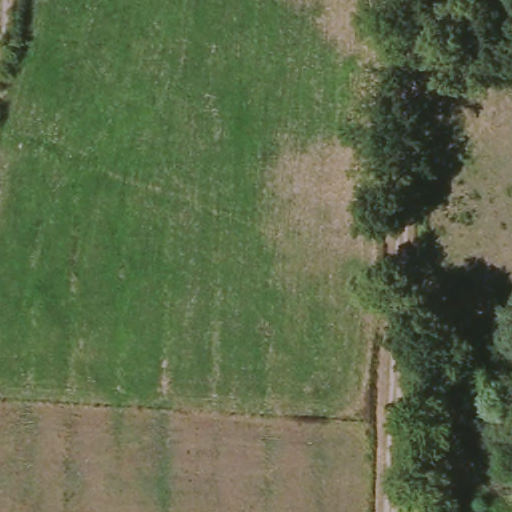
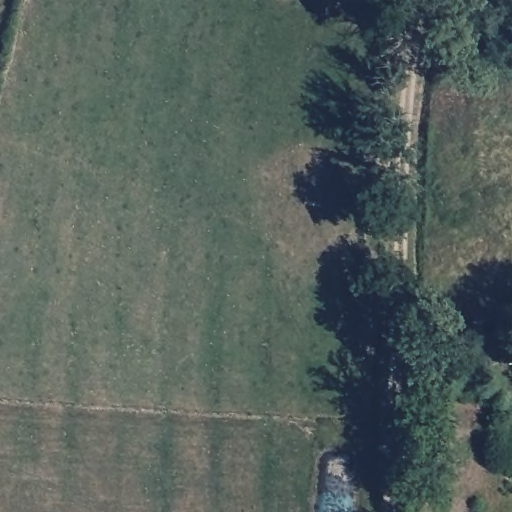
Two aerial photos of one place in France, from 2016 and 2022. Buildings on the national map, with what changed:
unchanged [(512,353),(512,364),(509,365),(508,353),(512,353)]

